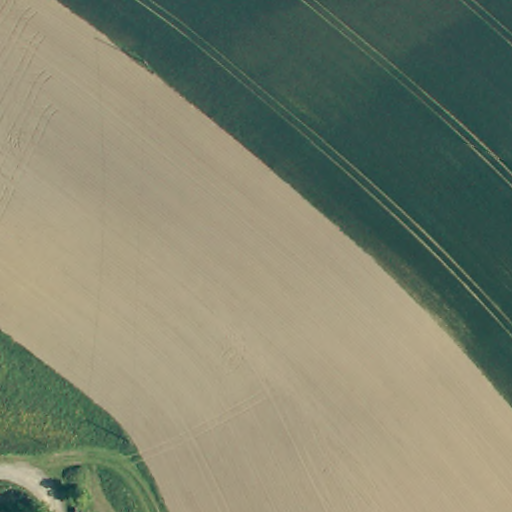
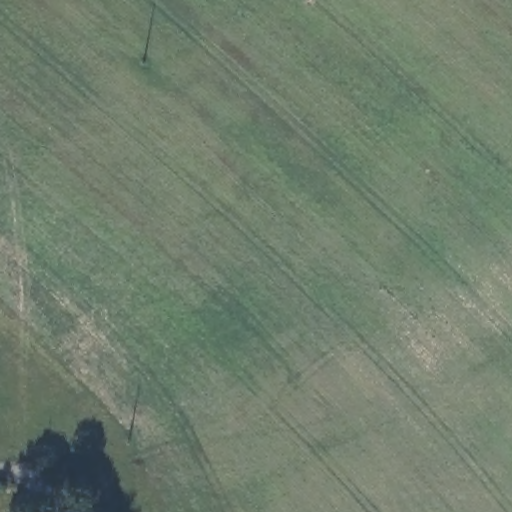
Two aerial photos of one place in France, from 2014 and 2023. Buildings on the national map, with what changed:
[]

